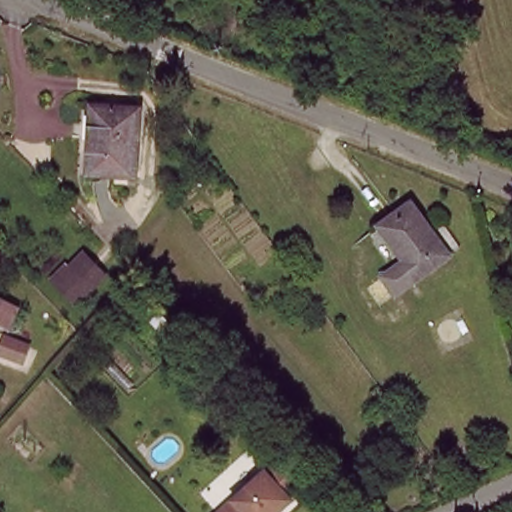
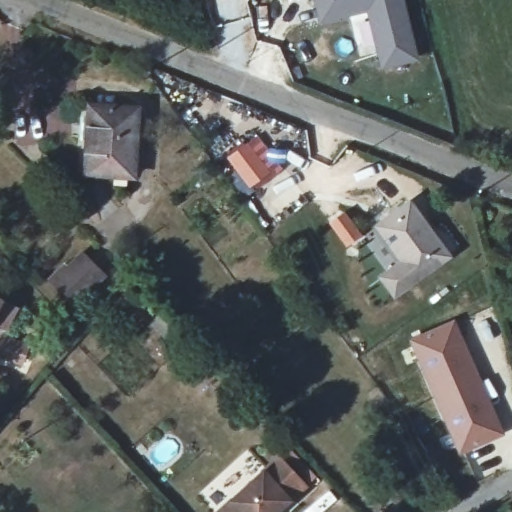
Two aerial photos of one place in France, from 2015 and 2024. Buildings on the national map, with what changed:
new [(416,57),(383,64),(372,13),(322,23),(316,0),(404,0),(416,57)]
unchanged [(82,108),(129,101),(140,168),(92,175),(82,108)]
new [(251,189),(226,157),(248,141),(257,153),(262,150),(278,170),(261,182),(251,189)]
unchanged [(391,291),(378,272),(401,255),(377,220),(408,199),(428,227),(444,251),(417,270),(413,273),(391,291)]
unchanged [(107,276),(78,305),(59,286),(55,282),(69,268),(73,272),(87,257),(107,276)]
unchanged [(11,304),(0,326),(0,299),(11,304)]
new [(410,341),(455,319),(505,435),(460,454),(410,341)]
unchanged [(0,354),(0,337),(1,336),(23,345),(17,361),(0,354)]
unchanged [(277,462),(302,490),(285,505),(288,508),(283,512),(221,512),(234,501),(277,462)]

